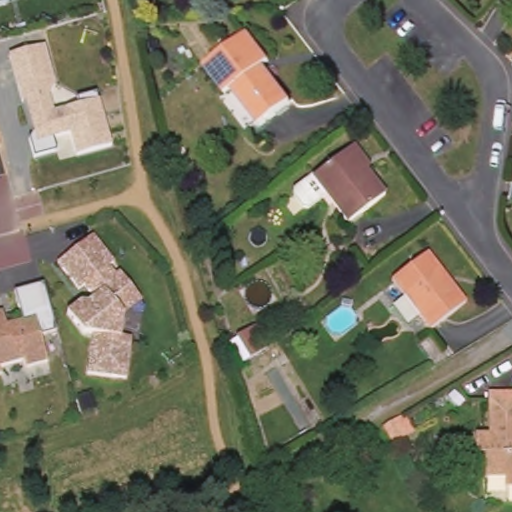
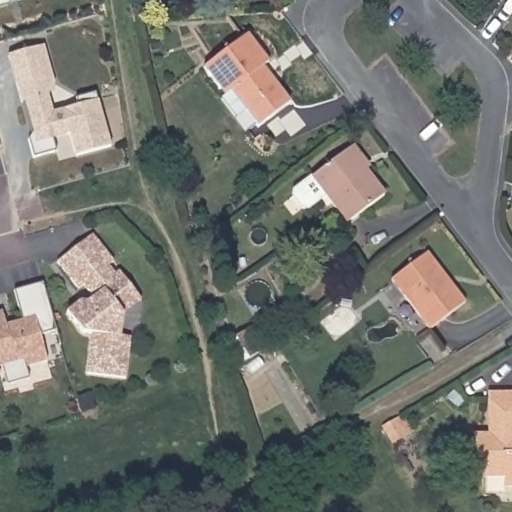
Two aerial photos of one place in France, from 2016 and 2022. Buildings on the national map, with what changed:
unchanged [(0,0),(6,0),(0,2),(0,0)]
unchanged [(223,100),(226,98),(204,69),(248,34),(270,63),(264,68),(291,103),(259,128),(257,125),(248,132),(223,100)]
unchanged [(48,44),(58,83),(50,97),(54,110),(80,104),(77,98),(97,93),(113,146),(75,156),(70,135),(54,140),(57,151),(36,156),(30,135),(35,134),(28,104),(21,105),(9,54),(48,44)]
unchanged [(0,151),(0,144),(2,151),(0,151)]
unchanged [(390,191),(354,219),(331,190),(312,204),(307,204),(298,191),(299,186),(318,172),(355,145),(390,191)]
unchanged [(84,332),(68,312),(81,302),(89,302),(95,297),(85,284),(79,289),(58,262),(93,234),(115,261),(110,265),(116,274),(121,270),(135,289),(143,299),(124,314),(121,335),(131,337),(126,378),(89,373),(93,333),(84,332)]
unchanged [(466,304),(431,330),(392,280),(428,253),(466,304)]
unchanged [(41,335),(48,361),(26,368),(24,361),(0,367),(0,312),(3,311),(7,325),(24,320),(15,290),(44,283),(58,330),(41,335)]
unchanged [(237,339),(237,338),(251,329),(259,324),(273,346),(265,351),(251,359),(237,339)]
unchanged [(0,375),(0,371),(1,374),(0,375)]
unchanged [(505,483),(505,474),(486,474),(485,451),(476,451),(475,430),(489,430),(488,388),(512,388),(512,483),(505,483)]
unchanged [(383,427),(396,419),(404,415),(413,431),(407,435),(393,444),(383,427)]

